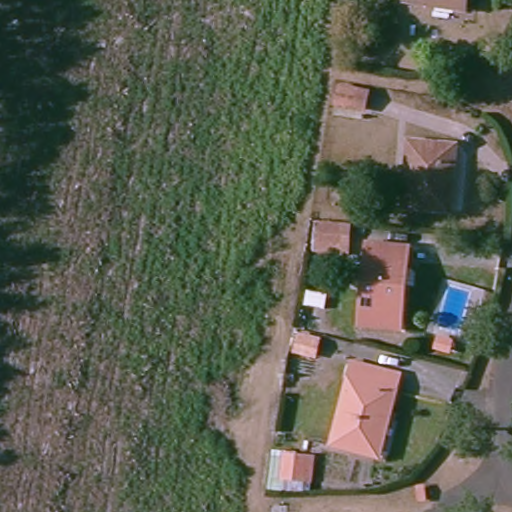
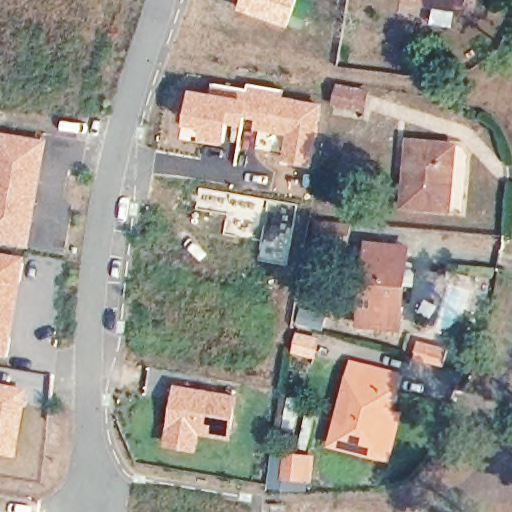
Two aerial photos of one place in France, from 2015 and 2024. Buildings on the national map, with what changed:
new [(239,0),(297,0),(287,27),(236,9),(239,0)]
unchanged [(421,0),(464,0),(463,5),(421,0)]
new [(190,88),(209,91),(211,81),(246,89),(247,82),(285,89),(283,96),(323,102),(311,167),(279,160),(283,137),(229,124),(224,145),(179,137),(190,88)]
unchanged [(329,94),(332,81),(358,86),(356,98),(329,94)]
new [(28,246),(0,241),(0,130),(48,139),(28,246)]
unchanged [(448,209),(405,206),(411,141),(456,146),(448,209)]
new [(266,198),(299,204),(287,267),(256,261),(266,198)]
unchanged [(311,234),(313,220),(337,222),(336,236),(311,234)]
unchanged [(361,325),(365,245),(400,246),(405,247),(404,267),(410,267),(415,271),(414,285),(403,284),(401,327),(361,325)]
new [(6,361),(0,360),(0,254),(24,258),(6,361)]
unchanged [(291,343),(295,330),(320,336),(318,349),(291,343)]
unchanged [(376,455),(336,449),(347,367),(387,372),(395,373),(393,391),(389,416),(384,456),(376,455)]
new [(171,382),(237,394),(232,422),(211,418),(210,423),(213,424),(210,436),(201,435),(197,453),(161,446),(171,382)]
new [(15,461),(0,457),(0,385),(27,390),(15,461)]
unchanged [(277,473),(281,450),(300,453),(295,476),(277,473)]

